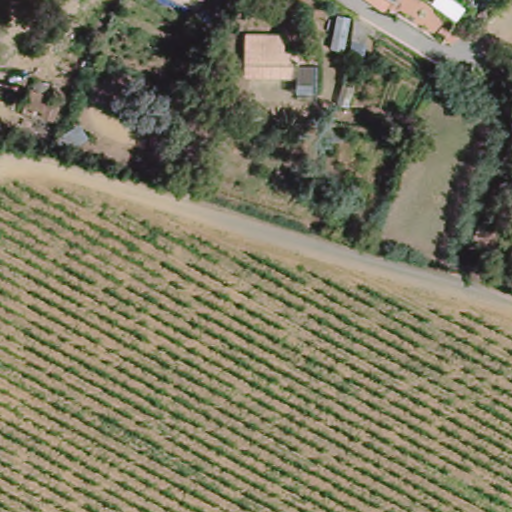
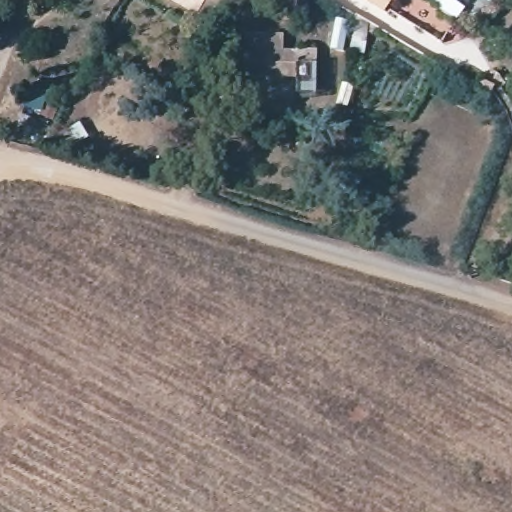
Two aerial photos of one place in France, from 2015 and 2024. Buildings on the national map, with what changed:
unchanged [(388,0),(395,0),(393,4),(388,0)]
unchanged [(314,95),(247,95),(246,21),(280,20),(280,36),(314,35),(314,95)]

